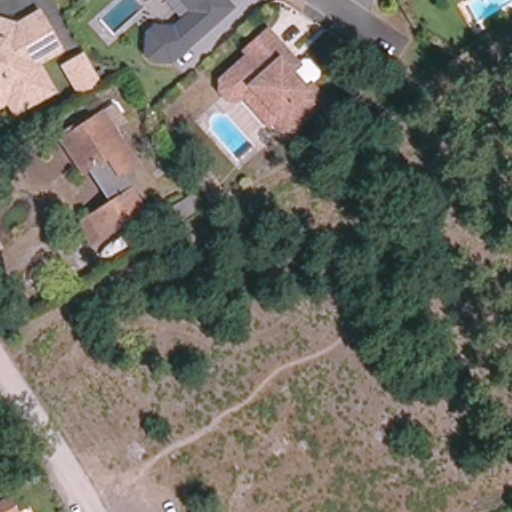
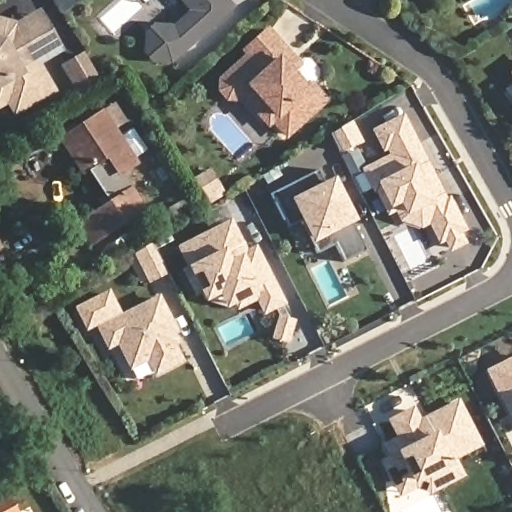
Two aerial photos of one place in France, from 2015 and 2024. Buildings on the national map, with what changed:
unchanged [(150,61),(142,50),(143,32),(156,22),(172,25),(187,11),(178,0),(228,0),(235,7),(171,64),(150,61)]
unchanged [(10,95),(1,80),(0,80),(0,15),(7,17),(10,22),(19,25),(28,19),(41,11),(60,43),(47,51),(35,58),(52,85),(23,103),(19,105),(12,94),(10,95)]
unchanged [(247,53),(269,34),(290,55),(300,66),(305,61),(310,61),(321,72),(320,77),(312,85),(327,102),(290,136),(275,121),(280,117),(275,111),(261,97),(254,89),(249,93),(232,75),(251,57),(247,53)]
unchanged [(76,94),(60,66),(80,54),(96,81),(76,94)]
unchanged [(275,121),(266,129),(240,101),(230,100),(223,93),(224,83),(232,75),(249,93),(254,89),(261,97),(275,111),(280,117),(275,121)]
unchanged [(0,100),(0,80),(1,80),(10,95),(0,100)]
new [(512,88),(512,95),(508,90),(512,88)]
unchanged [(135,162),(119,172),(143,211),(103,237),(92,244),(79,224),(90,216),(111,202),(89,167),(84,171),(62,137),(102,111),(124,145),(135,162)]
new [(445,204),(448,201),(462,230),(457,232),(462,243),(451,249),(446,238),(440,240),(427,214),(420,217),(407,214),(401,200),(391,205),(380,185),(390,180),(381,163),(393,156),(388,146),(384,148),(376,132),(402,119),(445,204)]
new [(358,141),(339,150),(330,135),(348,124),(358,141)]
unchanged [(192,174),(205,166),(216,185),(220,191),(207,199),(204,193),(192,174)]
new [(325,182),(335,177),(357,221),(352,224),(366,251),(345,261),(335,245),(318,253),(312,242),(301,222),(288,227),(271,194),(318,170),(325,182)]
unchanged [(201,202),(174,218),(166,205),(194,189),(201,202)]
new [(230,225),(245,255),(251,252),(257,266),(262,263),(281,303),(265,310),(256,291),(237,300),(229,303),(208,296),(203,288),(193,268),(183,249),(230,225)]
new [(149,246),(164,274),(147,282),(134,255),(149,246)]
new [(160,295),(179,333),(176,335),(180,345),(177,346),(185,362),(155,376),(148,362),(129,371),(119,347),(109,351),(95,326),(160,295)]
new [(512,357),(512,425),(485,371),(512,357)]
new [(412,412),(418,423),(457,404),(477,445),(446,460),(452,473),(430,485),(416,480),(411,471),(393,479),(385,463),(394,458),(388,445),(401,438),(393,421),(412,412)]
unchanged [(10,499),(17,512),(0,512),(0,504),(10,499)]

